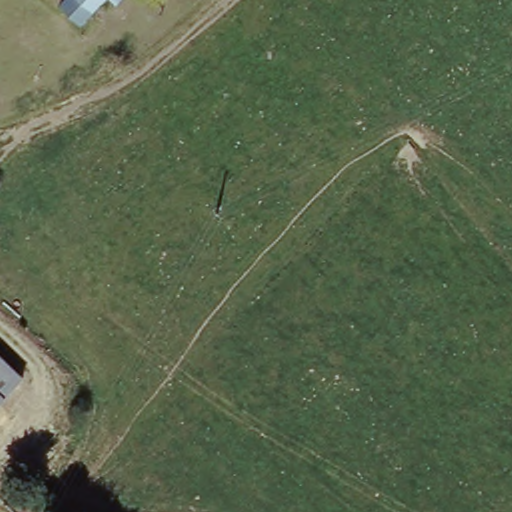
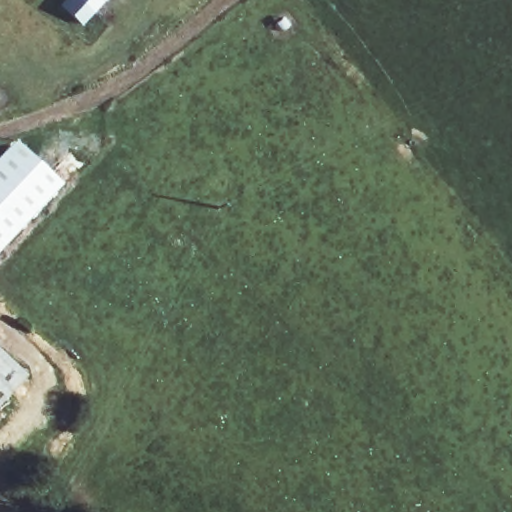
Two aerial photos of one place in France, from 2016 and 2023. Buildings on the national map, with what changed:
new [(57,6),(63,0),(104,0),(82,24),(57,6)]
demolished [(74,0),(115,0),(118,2),(98,24),(73,1),(74,0)]
new [(14,139),(61,183),(0,248),(0,154),(14,139)]
unchanged [(20,381),(0,402),(0,363),(20,381)]

